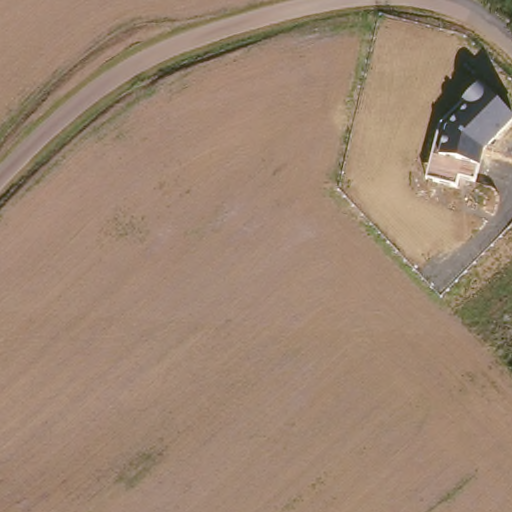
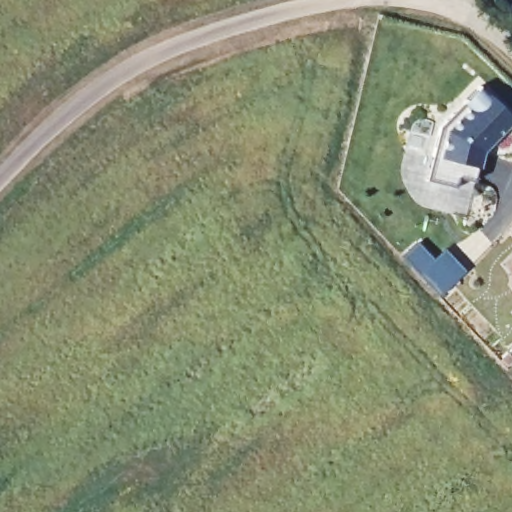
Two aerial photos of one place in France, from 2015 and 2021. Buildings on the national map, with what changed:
unchanged [(458,178),(456,186),(426,180),(438,129),(476,85),(512,116),(512,121),(482,151),(478,166),(474,181),(458,178)]
new [(463,272),(439,297),(401,256),(418,242),(434,258),(444,249),(463,272)]

